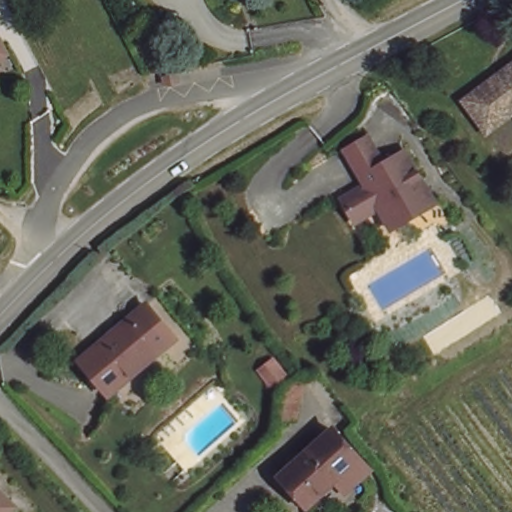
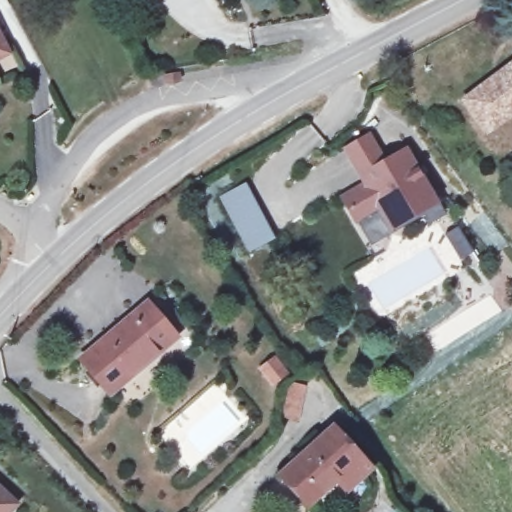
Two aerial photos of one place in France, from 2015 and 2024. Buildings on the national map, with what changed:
unchanged [(0,56),(0,40),(7,52),(0,56)]
unchanged [(460,100),(512,61),(512,109),(483,131),(460,100)]
unchanged [(387,216),(381,206),(357,220),(344,196),(367,182),(347,149),(370,135),(385,162),(406,150),(427,186),(422,210),(407,218),(393,226),(387,216)]
unchanged [(194,180),(201,175),(204,178),(197,184),(194,180)]
new [(275,239),(248,252),(220,199),(247,184),(275,239)]
unchanged [(171,338),(111,397),(81,366),(144,308),(171,338)]
unchanged [(300,370),(289,377),(280,365),(290,357),(300,370)]
unchanged [(368,471),(343,495),(330,481),(305,504),(282,480),(334,433),(368,471)]
unchanged [(14,508),(11,512),(0,512),(0,495),(14,508)]

